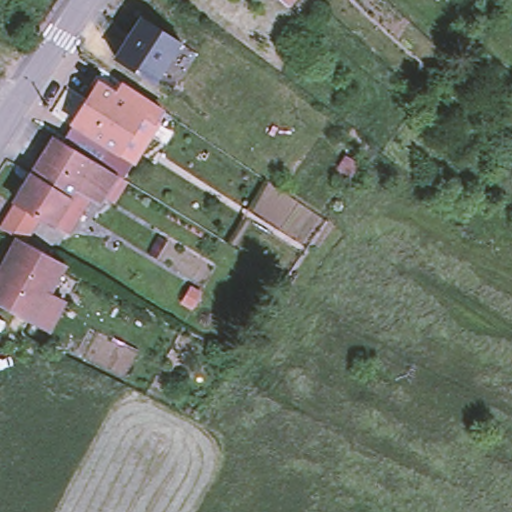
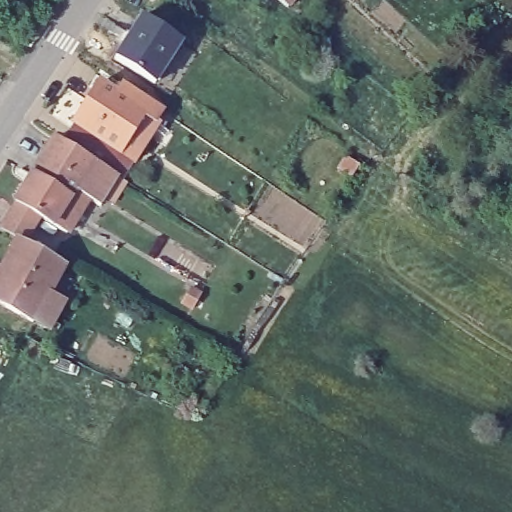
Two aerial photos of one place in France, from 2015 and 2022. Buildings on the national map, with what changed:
unchanged [(280,0),(294,0),(289,7),(280,0)]
unchanged [(175,43),(150,83),(111,58),(121,43),(115,39),(117,38),(105,31),(110,23),(121,30),(122,29),(127,33),(137,18),(175,43)]
unchanged [(115,147),(70,118),(91,84),(85,81),(92,70),(111,83),(115,77),(119,79),(124,83),(157,105),(149,117),(147,121),(135,114),(115,147)]
unchanged [(70,118),(115,147),(104,165),(57,137),(70,118)]
unchanged [(62,228),(11,197),(13,194),(10,189),(16,180),(22,179),(50,132),(57,137),(104,165),(114,171),(95,200),(84,193),(67,222),(62,228)]
unchanged [(34,327),(0,308),(0,271),(2,273),(19,244),(65,269),(50,298),(62,304),(47,334),(34,327)]
unchanged [(201,294),(192,308),(182,302),(190,288),(201,294)]

